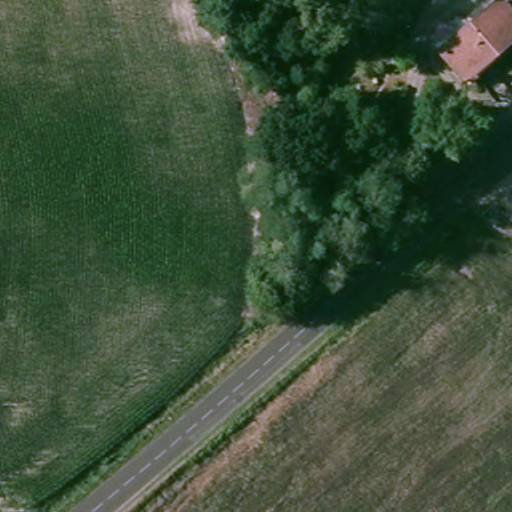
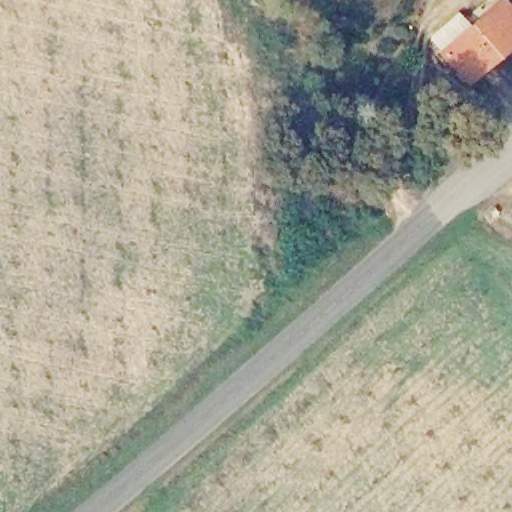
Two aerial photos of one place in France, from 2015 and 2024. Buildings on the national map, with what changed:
unchanged [(512,10),(512,44),(471,80),(444,51),(500,0),(503,0),(512,10)]

